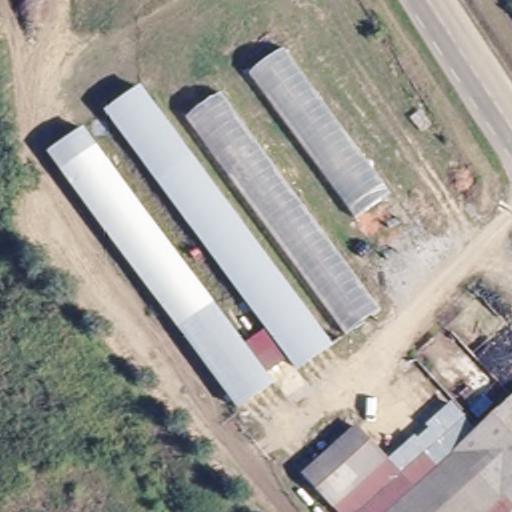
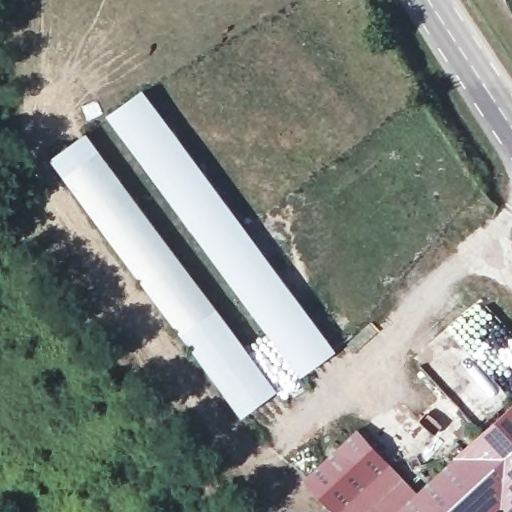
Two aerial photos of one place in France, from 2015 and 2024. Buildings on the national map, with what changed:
demolished [(285,49),(390,190),(353,219),(251,76),(285,49)]
unchanged [(140,91),(334,346),(322,356),(297,377),(101,117),(121,103),(140,91)]
demolished [(382,314),(347,340),(188,119),(222,95),(382,314)]
unchanged [(45,161),(83,133),(277,389),(240,417),(45,161)]
demolished [(443,418),(433,406),(443,398),(476,432),(412,489),(389,462),(443,418)]
unchanged [(498,508),(493,512),(436,512),(418,489),(512,400),(512,496),(498,508)]
unchanged [(347,429),(382,466),(334,512),(328,512),(295,480),(347,429)]
unchanged [(334,512),(382,466),(411,495),(393,512),(334,512)]
unchanged [(393,512),(411,495),(418,489),(436,512),(393,512)]
unchanged [(502,512),(498,508),(512,496),(512,512),(502,512)]
demolished [(493,512),(498,508),(502,512),(493,512)]

